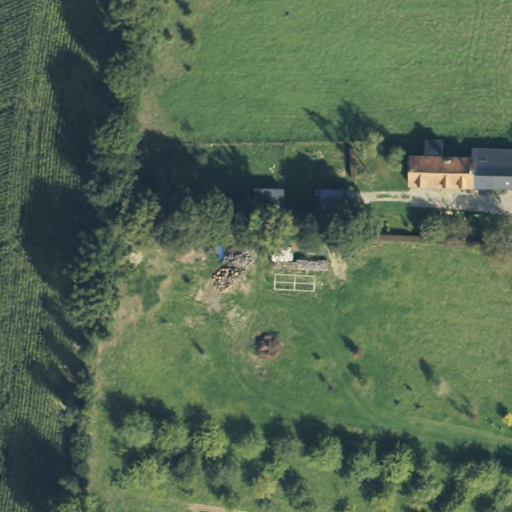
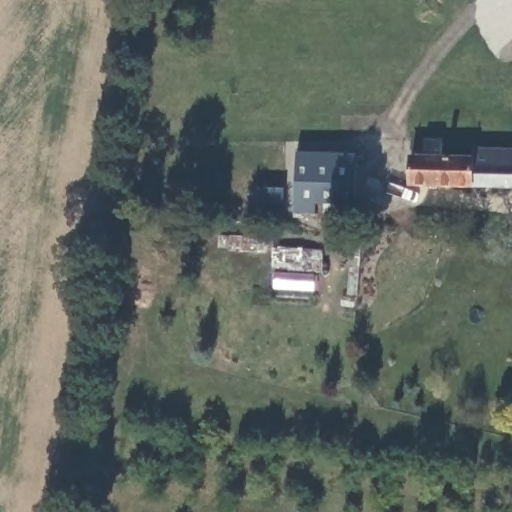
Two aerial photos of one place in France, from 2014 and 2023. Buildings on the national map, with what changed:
unchanged [(414,156),(427,156),(427,140),(445,140),(444,156),(475,157),(475,147),(512,148),(512,183),(475,182),(414,182),(414,156)]
new [(355,207),(315,206),(315,216),(295,215),(296,152),(357,154),(355,207)]
demolished [(347,210),(327,209),(327,204),(317,204),(317,192),(348,193),(347,210)]

